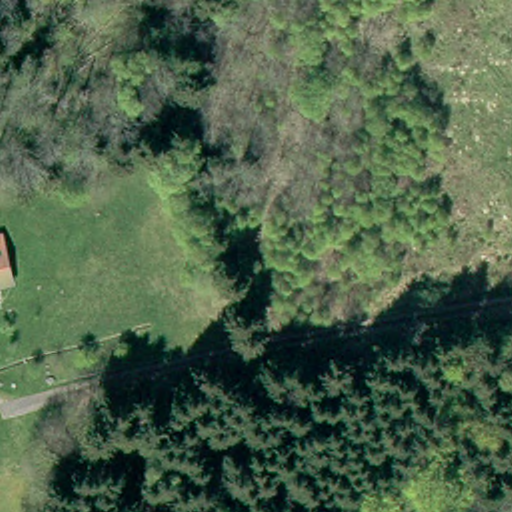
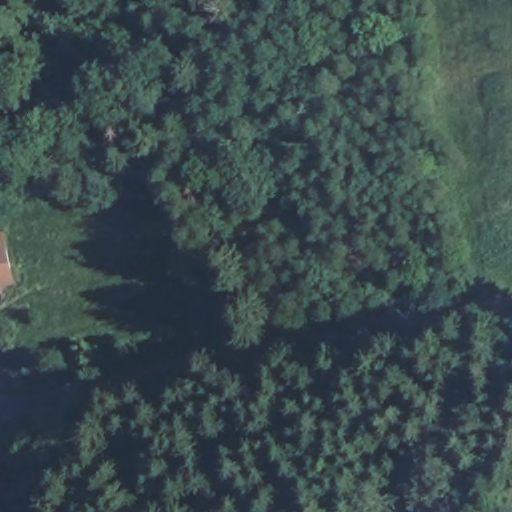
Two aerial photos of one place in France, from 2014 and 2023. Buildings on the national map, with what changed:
unchanged [(20,279),(0,283),(0,230),(7,229),(20,279)]

